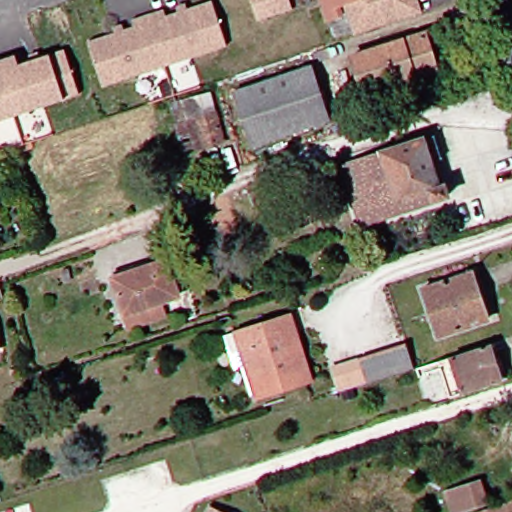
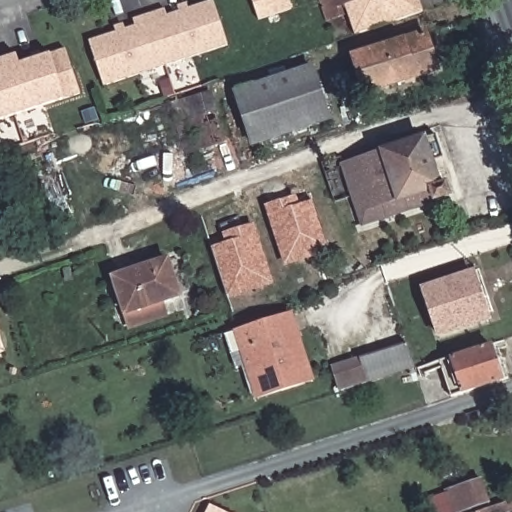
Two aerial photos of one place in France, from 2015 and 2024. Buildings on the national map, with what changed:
unchanged [(115,28),(122,25),(124,31),(135,26),(132,20),(164,9),(166,16),(180,11),(177,6),(185,3),(187,8),(211,0),(227,44),(105,86),(90,43),(117,33),(115,28)]
unchanged [(257,20),(250,0),(289,0),(292,8),(257,20)]
unchanged [(355,34),(345,3),(340,5),(343,15),(327,21),(320,0),(419,0),(422,11),(355,34)]
unchanged [(357,56),(429,32),(441,68),(368,93),(356,58),(357,56)]
unchanged [(19,64),(32,59),(31,54),(38,51),(40,56),(65,48),(81,93),(0,121),(0,60),(16,55),(19,64)]
unchanged [(259,145),(242,94),(319,69),(335,120),(259,145)]
unchanged [(194,151),(193,147),(185,150),(171,105),(207,94),(222,143),(194,151)]
unchanged [(372,217),(368,206),(361,208),(345,160),(438,130),(446,151),(433,156),(442,181),(447,179),(451,190),(418,201),(410,204),(372,217)]
new [(265,206),(297,195),(300,204),(312,200),(328,254),(285,267),(265,206)]
new [(212,247),(225,243),(222,234),(254,224),(274,285),(229,300),(212,247)]
unchanged [(182,295),(127,313),(116,279),(171,260),(182,295)]
unchanged [(478,301),(485,320),(438,336),(422,290),(477,271),(486,297),(478,301)]
unchanged [(310,364),(316,380),(262,398),(251,366),(241,369),(229,336),(294,315),(300,332),(310,364)]
unchanged [(358,357),(407,341),(416,368),(367,384),(341,393),(332,366),(358,357)]
unchanged [(437,361),(487,345),(495,343),(507,379),(499,382),(449,398),(437,361)]
unchanged [(0,353),(0,344),(2,352),(0,353)]
unchanged [(491,504),(464,512),(457,512),(450,491),(483,480),(491,504)]
unchanged [(507,512),(506,512),(504,505),(512,502),(512,511),(507,512)]
unchanged [(210,503),(228,512),(205,512),(210,503)]

